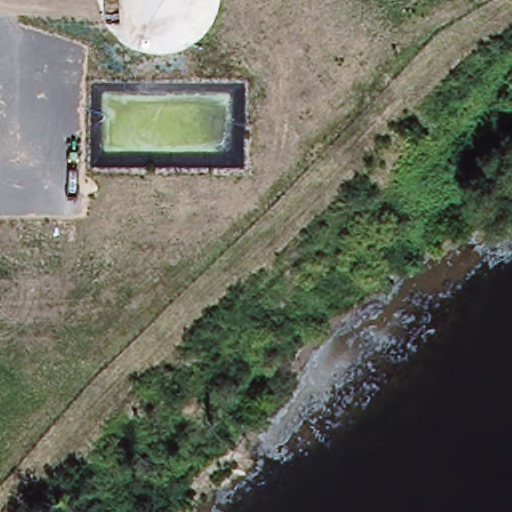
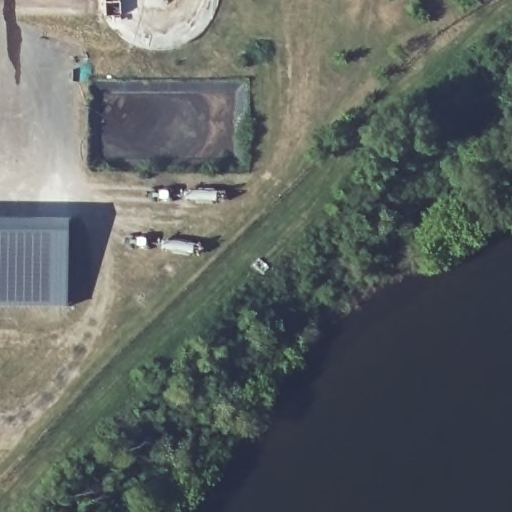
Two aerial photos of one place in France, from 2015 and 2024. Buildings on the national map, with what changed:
new [(62,226),(61,311),(0,310),(0,225),(62,226)]

